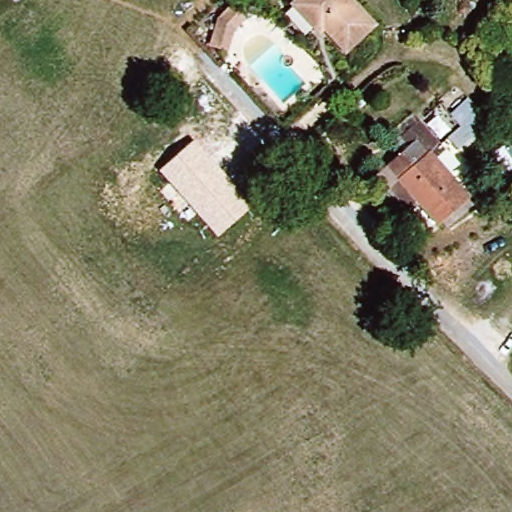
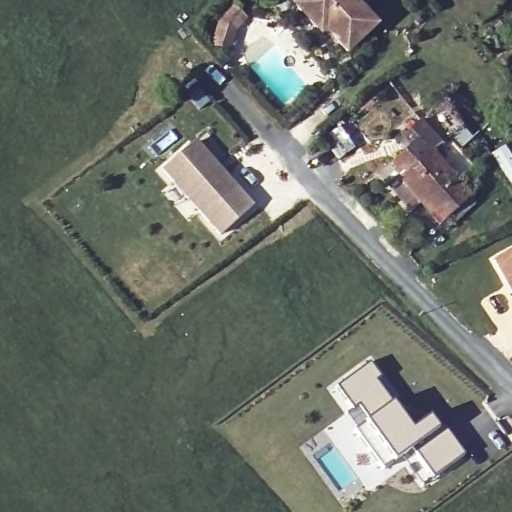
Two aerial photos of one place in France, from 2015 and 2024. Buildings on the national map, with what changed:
unchanged [(232,34),(237,10),(245,0),(262,0),(266,4),(253,20),(251,31),(249,39),(244,38),(232,34)]
unchanged [(376,26),(349,52),(325,26),(318,30),(290,1),(290,0),(352,0),(376,26)]
unchanged [(459,149),(430,116),(442,105),(450,114),(469,96),(490,120),(459,149)]
unchanged [(410,145),(404,138),(424,121),(444,145),(436,151),(472,191),(437,222),(424,208),(415,216),(377,175),(410,145)]
unchanged [(254,206),(220,237),(162,172),(197,142),(254,206)]
new [(504,145),(512,157),(512,188),(490,154),(504,145)]
new [(512,249),(512,299),(491,262),(512,249)]
new [(369,360),(382,377),(377,381),(412,428),(431,414),(465,454),(424,485),(410,468),(405,462),(402,463),(400,461),(396,464),(356,406),(351,409),(334,386),(369,360)]
new [(351,409),(356,406),(396,464),(384,471),(360,439),(345,413),(351,409)]

